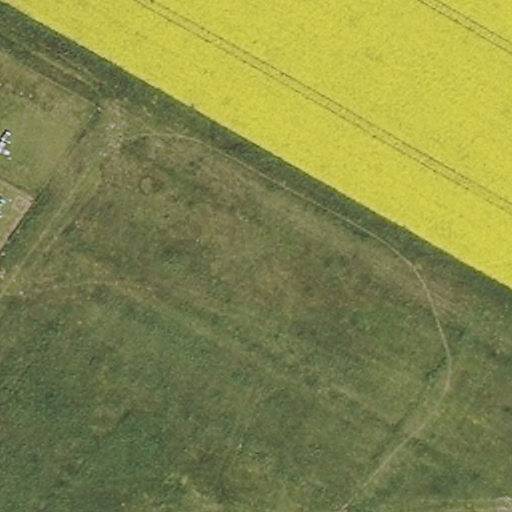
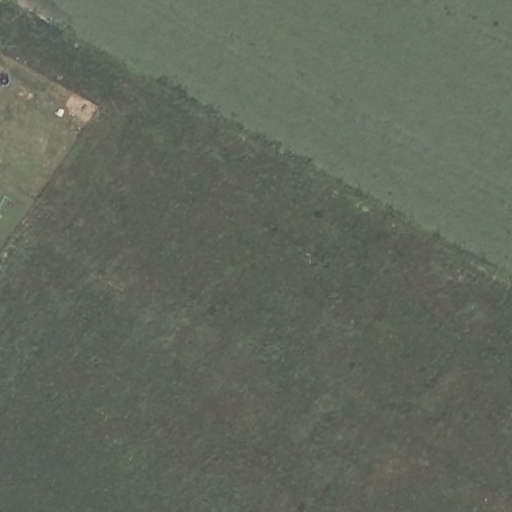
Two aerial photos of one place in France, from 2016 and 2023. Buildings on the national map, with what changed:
[]

